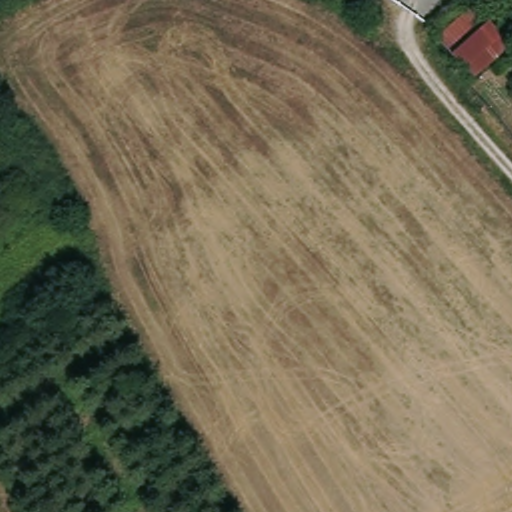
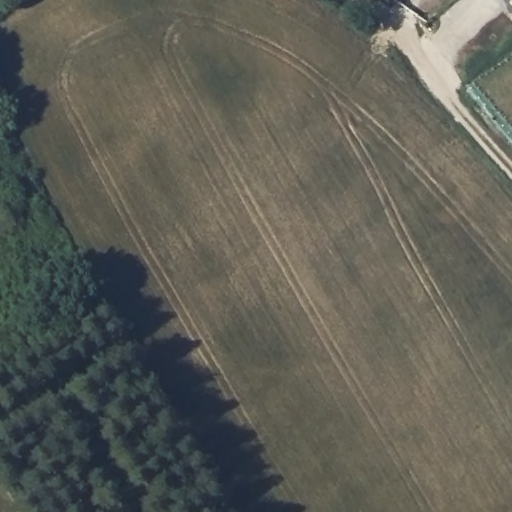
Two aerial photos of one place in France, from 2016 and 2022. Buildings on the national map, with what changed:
unchanged [(509,42),(476,80),(436,44),(468,5),(509,42)]

